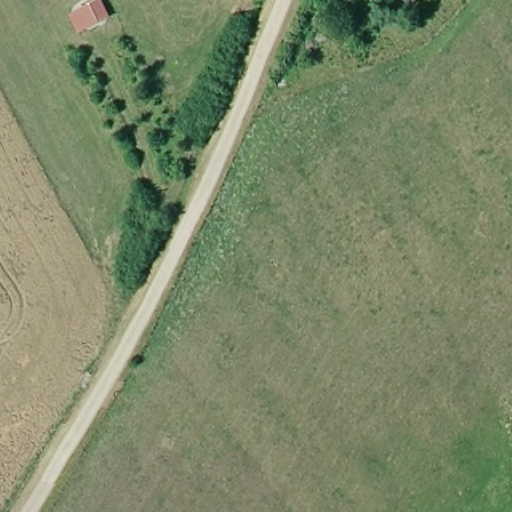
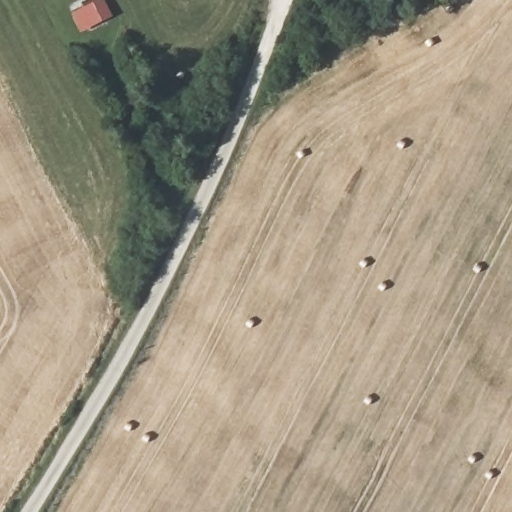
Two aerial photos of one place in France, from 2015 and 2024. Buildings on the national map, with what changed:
unchanged [(409,13),(401,0),(428,0),(428,1),(409,13)]
unchanged [(100,3),(105,16),(79,30),(72,13),(100,3)]

